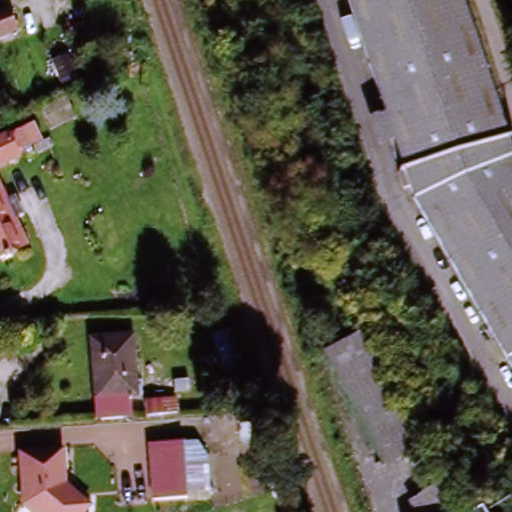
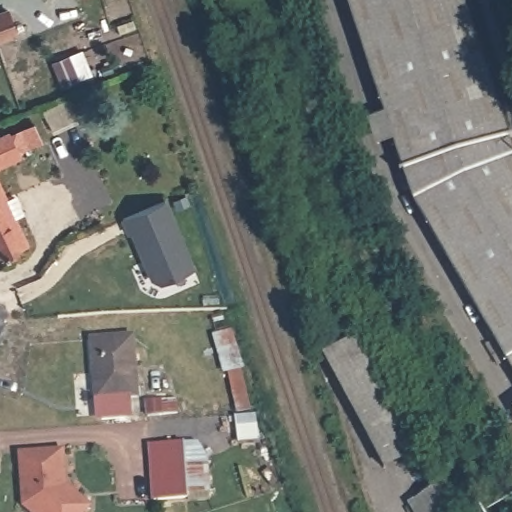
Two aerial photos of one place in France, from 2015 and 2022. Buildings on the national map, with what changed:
unchanged [(415,200),(397,152),(377,155),(369,129),(386,123),(344,0),(465,0),(512,153),(512,154),(512,368),(415,200)]
unchanged [(10,146),(36,131),(39,137),(47,149),(20,164),(0,175),(0,143),(7,140),(10,146)]
unchanged [(0,193),(5,207),(17,202),(25,224),(14,228),(23,250),(0,260),(0,259),(0,193)]
new [(161,205),(188,265),(156,280),(150,277),(130,235),(127,236),(120,223),(161,205)]
unchanged [(90,337),(130,334),(135,390),(94,393),(90,337)]
unchanged [(387,473),(325,359),(362,337),(423,452),(387,473)]
unchanged [(136,408),(120,420),(102,421),(94,412),(94,393),(135,390),(136,408)]
unchanged [(147,443),(205,443),(210,502),(151,502),(147,443)]
unchanged [(93,509),(90,512),(26,512),(20,507),(17,452),(63,450),(67,485),(93,509)]
unchanged [(458,512),(408,512),(445,485),(458,512)]

